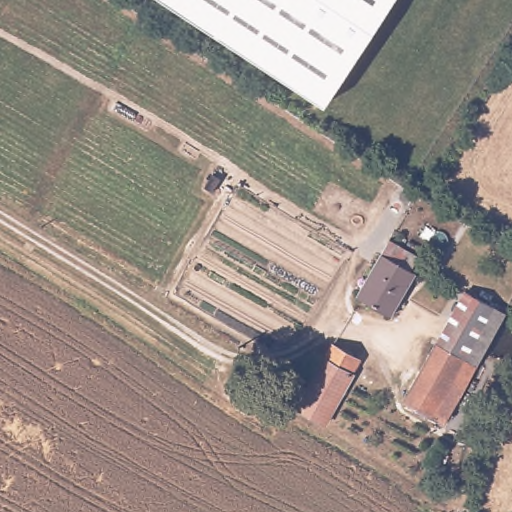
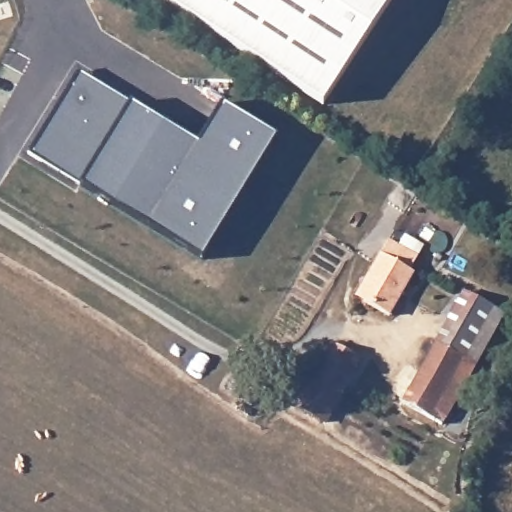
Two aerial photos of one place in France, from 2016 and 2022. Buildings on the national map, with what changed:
unchanged [(323,106),(162,0),(393,0),(323,106)]
new [(203,261),(81,187),(28,155),(80,71),(131,104),(198,144),(224,103),(277,137),(203,261)]
unchanged [(362,298),(391,239),(418,254),(412,265),(417,270),(394,313),(362,298)]
unchanged [(441,330),(459,295),(500,317),(481,353),(441,330)]
unchanged [(441,330),(481,353),(447,417),(406,397),(441,330)]
unchanged [(297,401),(320,356),(331,344),(355,356),(347,371),(349,373),(327,417),(297,401)]

